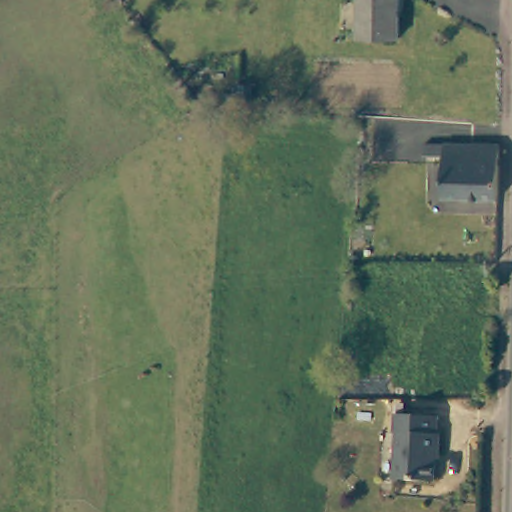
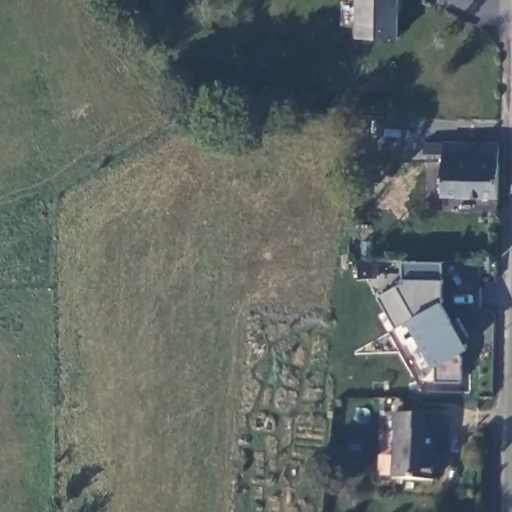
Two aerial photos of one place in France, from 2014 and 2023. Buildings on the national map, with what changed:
unchanged [(355,38),(355,0),(396,0),(395,40),(355,38)]
unchanged [(245,86),(245,106),(232,105),(232,86),(245,86)]
unchanged [(438,161),(422,160),(422,145),(493,147),(494,202),(436,200),(438,161)]
new [(444,301),(470,349),(461,354),(460,381),(435,379),(435,368),(408,322),(395,330),(377,298),(397,286),(403,282),(402,279),(442,281),(444,301)]
unchanged [(432,411),(432,427),(435,427),(435,447),(430,447),(429,474),(392,473),(395,427),(393,427),(393,410),(432,411)]

